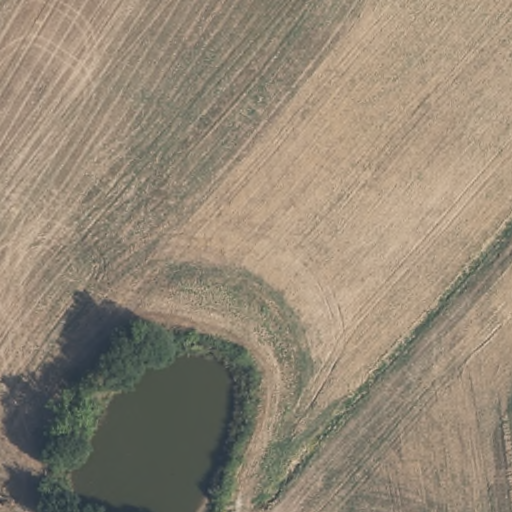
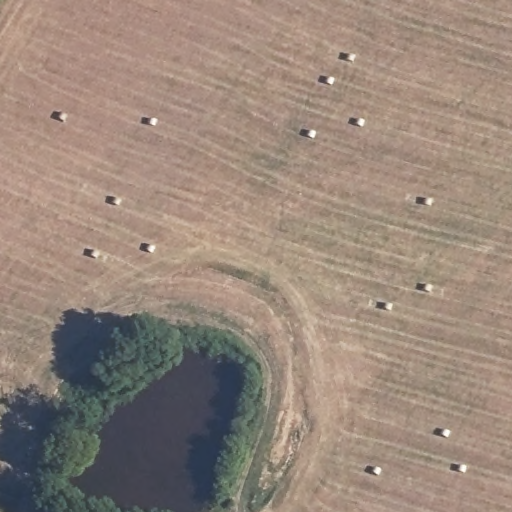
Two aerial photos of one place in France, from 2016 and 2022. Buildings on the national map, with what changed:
[]

